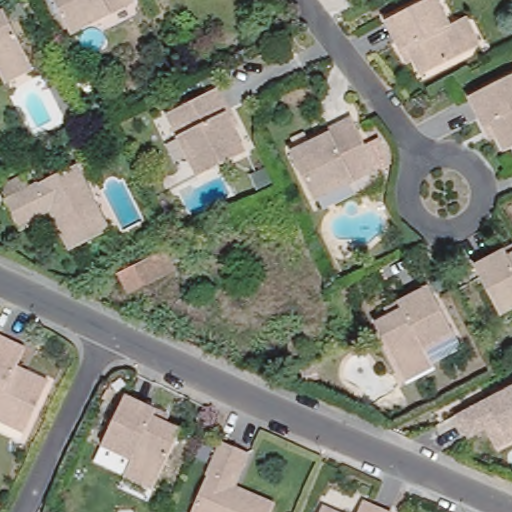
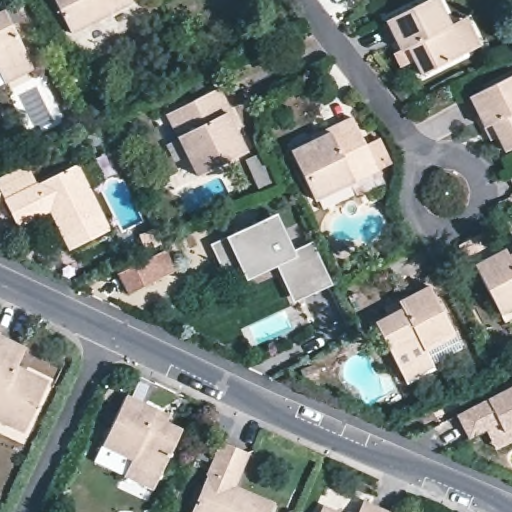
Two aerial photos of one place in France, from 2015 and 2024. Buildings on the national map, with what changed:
unchanged [(135,0),(139,7),(75,39),(56,0),(135,0)]
unchanged [(392,21),(431,0),(442,0),(454,23),(460,20),(469,16),(483,44),(474,48),(425,72),(418,59),(412,62),(407,51),(392,21)]
unchanged [(0,74),(0,21),(8,17),(30,64),(35,74),(7,88),(2,78),(0,74)]
unchanged [(469,100),(512,79),(512,150),(503,155),(496,139),(489,143),(484,132),(469,100)]
unchanged [(229,113),(237,130),(231,132),(242,154),(197,176),(165,112),(215,86),(229,113)]
unchanged [(316,148),(313,142),(328,135),(353,122),(378,174),(314,205),(292,159),(316,148)]
unchanged [(18,222),(5,197),(77,163),(109,226),(72,244),(53,205),(18,222)]
new [(288,251),(311,243),(328,285),(290,301),(276,269),(243,278),(228,288),(210,248),(226,239),(274,215),(288,251)]
unchanged [(473,265),(504,250),(512,246),(512,309),(499,316),(473,265)]
unchanged [(167,270),(123,292),(114,274),(158,252),(167,270)]
unchanged [(374,322),(387,315),(384,307),(396,300),(426,283),(451,333),(424,346),(427,353),(432,363),(403,378),(398,367),(374,322)]
unchanged [(7,396),(0,393),(0,338),(2,334),(30,347),(45,354),(40,362),(55,369),(34,416),(30,425),(0,411),(4,402),(7,396)]
unchanged [(495,418),(478,427),(468,407),(512,385),(512,437),(506,440),(495,418)]
unchanged [(133,457),(104,444),(127,394),(157,408),(170,414),(167,422),(181,429),(159,477),(155,486),(126,473),(130,463),(133,457)]
unchanged [(222,445),(250,457),(235,491),(274,508),(272,512),(192,512),(222,445)]
unchanged [(363,502),(387,512),(358,512),(363,502)]
unchanged [(322,506),(337,512),(320,512),(322,506)]

